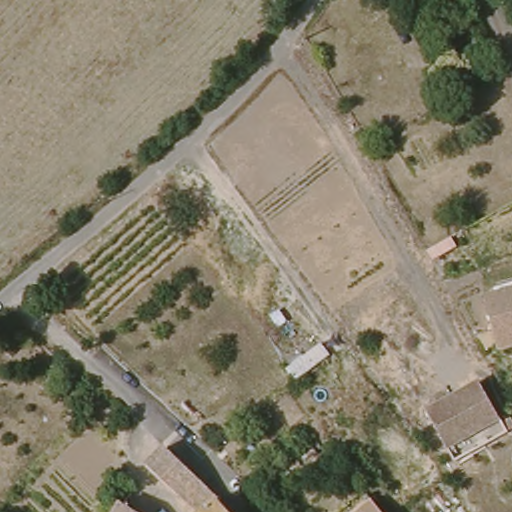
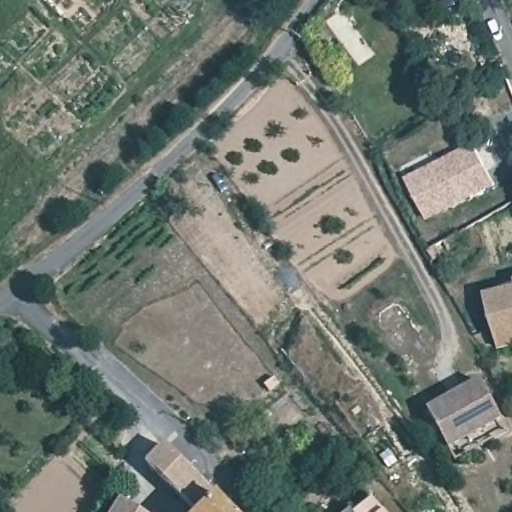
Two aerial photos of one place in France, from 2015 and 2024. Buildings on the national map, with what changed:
new [(472,145),(496,188),(428,223),(406,180),(472,145)]
unchanged [(512,292),(512,349),(494,353),(491,343),(480,300),(512,292)]
unchanged [(479,383),(502,419),(479,433),(456,397),(479,383)]
unchanged [(451,451),(428,415),(456,397),(479,433),(451,451)]
unchanged [(173,444),(230,500),(228,503),(236,512),(202,512),(155,465),(173,444)]
unchanged [(381,512),(347,512),(368,495),(381,512)]
unchanged [(115,512),(125,496),(148,512),(115,512)]

